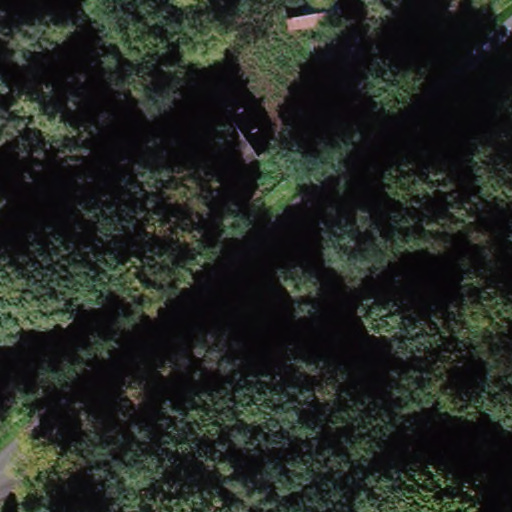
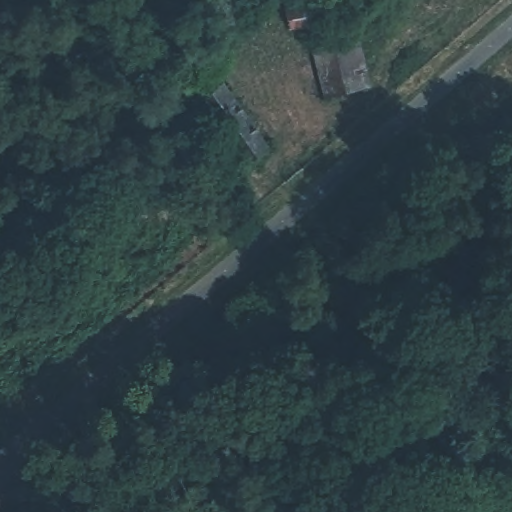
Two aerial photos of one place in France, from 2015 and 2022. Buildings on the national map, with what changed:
unchanged [(333,0),(335,0),(340,19),(285,31),(280,11),(333,0)]
unchanged [(305,44),(349,34),(363,87),(320,100),(305,44)]
unchanged [(265,145),(242,161),(195,98),(220,81),(265,145)]

